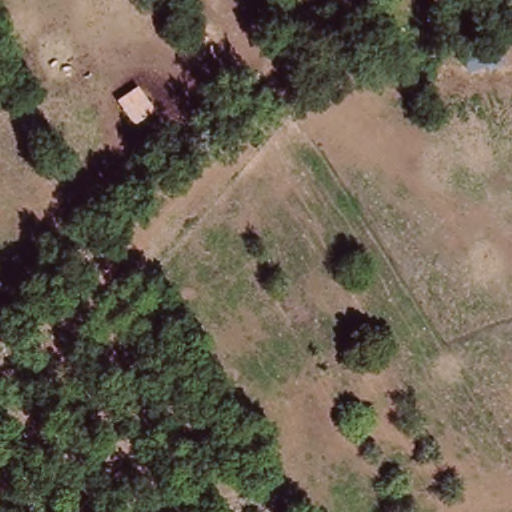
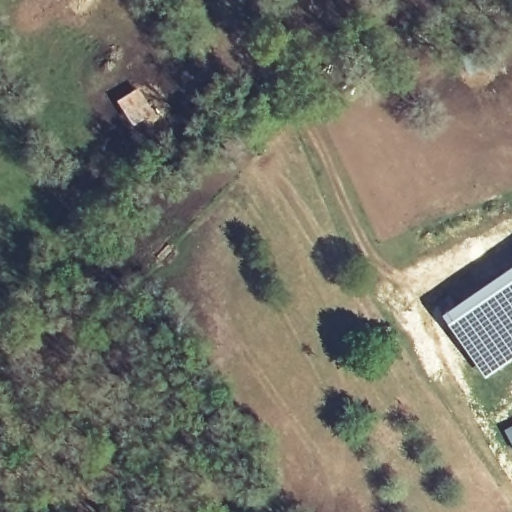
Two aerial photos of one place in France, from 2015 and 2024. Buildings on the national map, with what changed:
demolished [(473,83),(466,62),(498,48),(503,72),(473,83)]
unchanged [(158,118),(137,133),(117,104),(137,89),(158,118)]
new [(512,363),(486,381),(442,316),(512,267),(512,363)]
new [(512,426),(512,444),(504,430),(512,426)]

